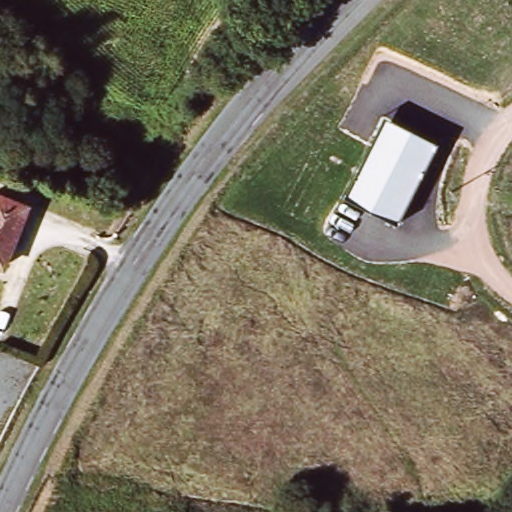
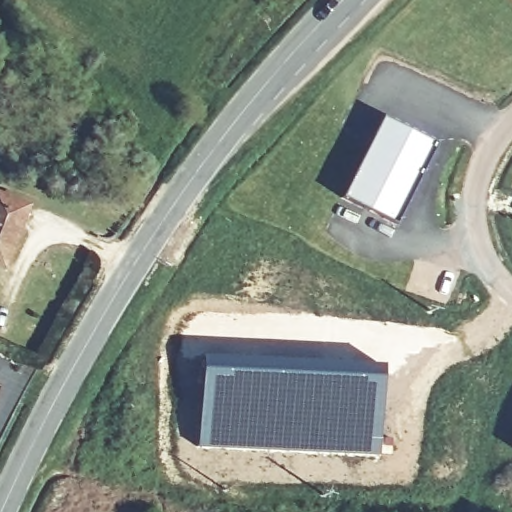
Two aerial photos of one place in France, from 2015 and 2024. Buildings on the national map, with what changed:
unchanged [(436,145),(395,227),(342,202),(382,119),(436,145)]
unchanged [(5,265),(0,264),(0,199),(26,208),(5,265)]
new [(200,355),(218,356),(217,366),(285,372),(382,374),(379,454),(197,448),(200,355)]

